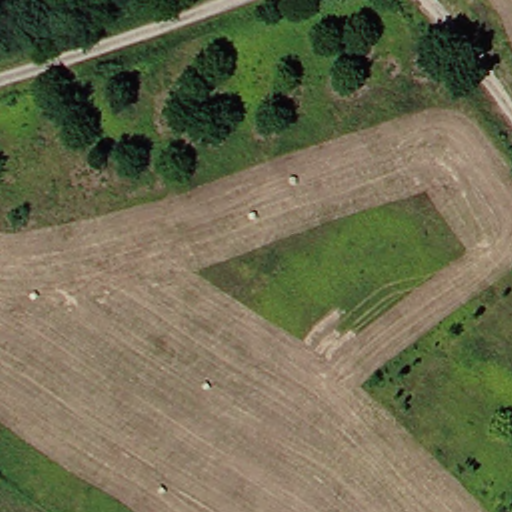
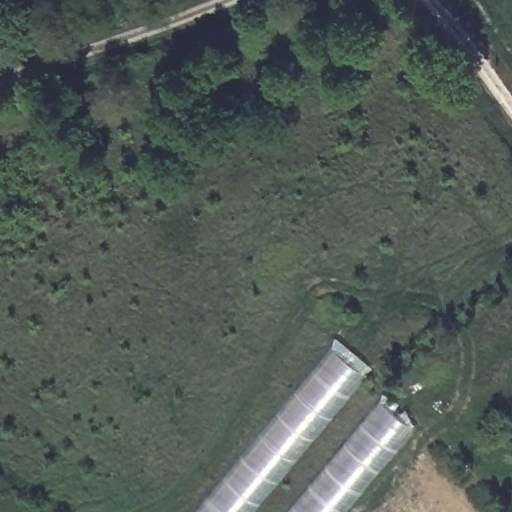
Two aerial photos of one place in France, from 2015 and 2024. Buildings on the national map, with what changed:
new [(367,377),(257,512),(199,512),(333,349),(367,377)]
new [(415,429),(347,512),(290,512),(381,401),(415,429)]

